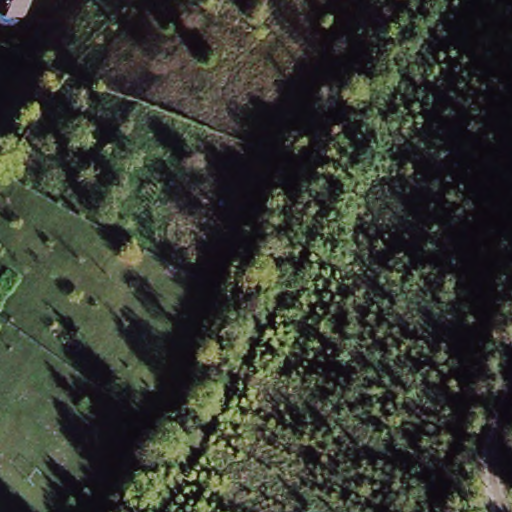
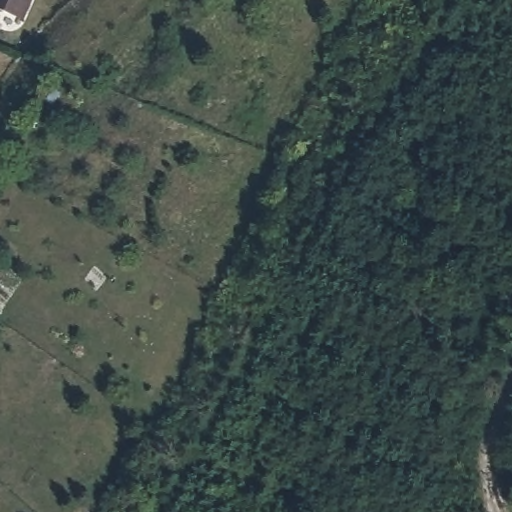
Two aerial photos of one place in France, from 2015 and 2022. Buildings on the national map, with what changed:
unchanged [(0,15),(0,0),(31,0),(20,23),(0,15)]

